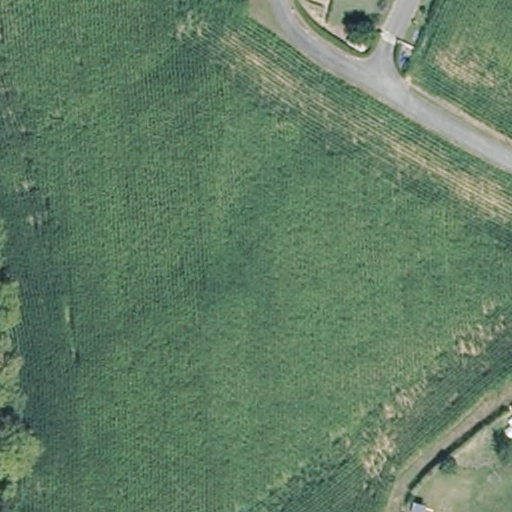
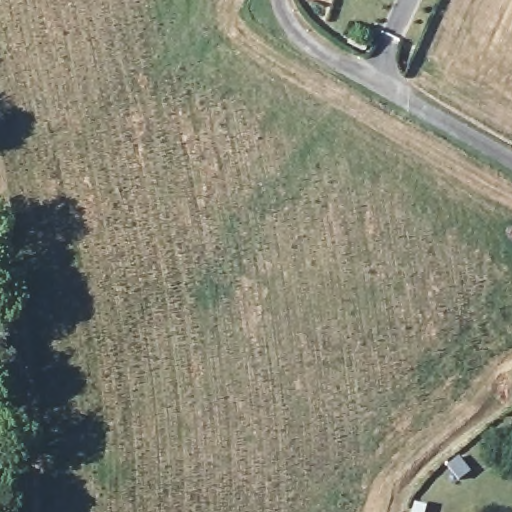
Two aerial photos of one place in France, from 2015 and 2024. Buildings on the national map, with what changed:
[]

